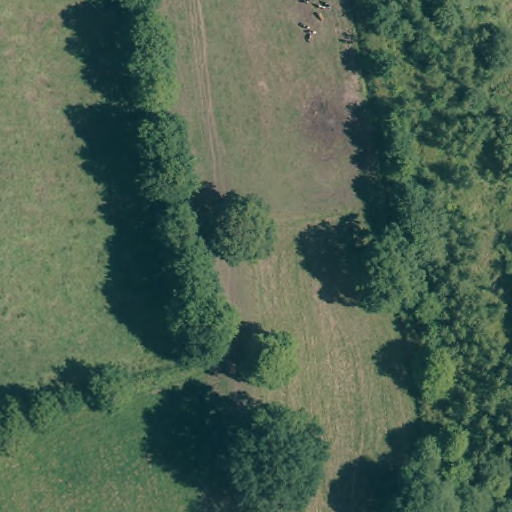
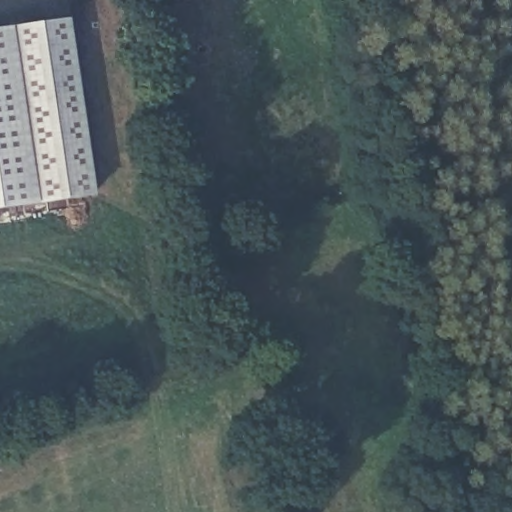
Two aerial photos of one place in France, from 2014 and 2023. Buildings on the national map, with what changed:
new [(67,19),(91,198),(0,211),(0,29),(67,19)]

